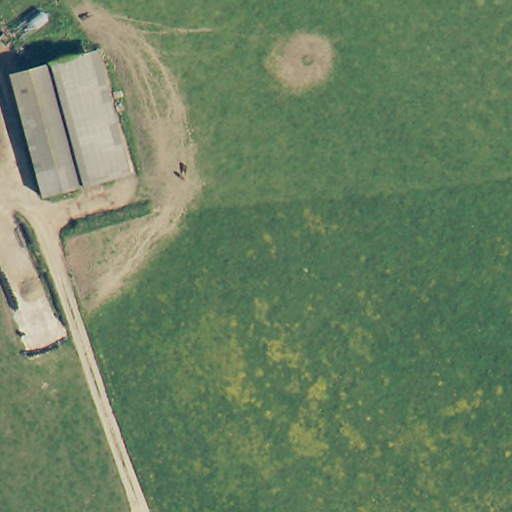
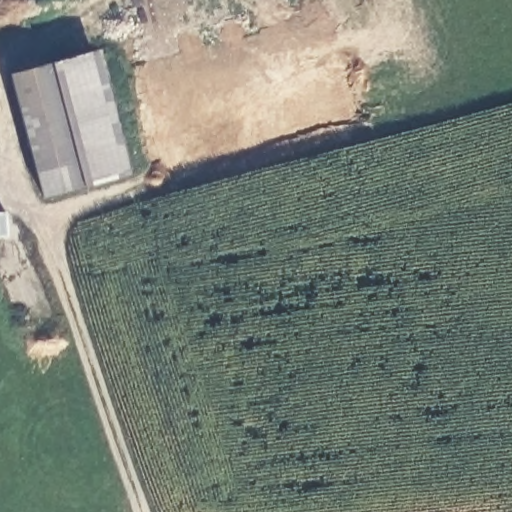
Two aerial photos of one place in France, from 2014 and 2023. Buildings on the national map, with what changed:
unchanged [(72,58),(92,52),(106,103),(125,175),(87,185),(52,195),(18,67),(57,60),(72,58)]

